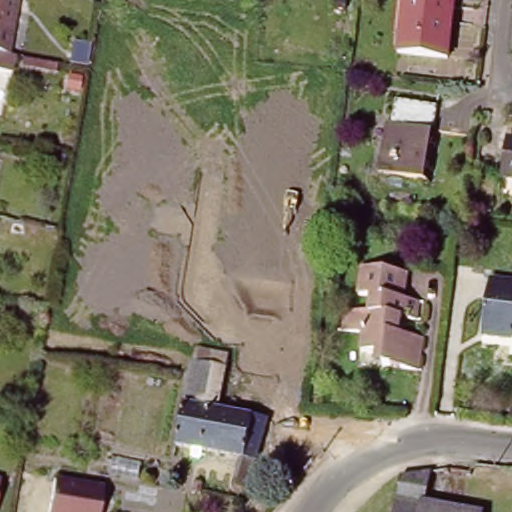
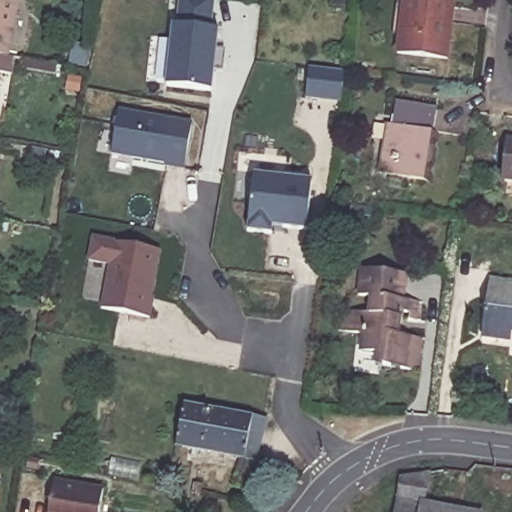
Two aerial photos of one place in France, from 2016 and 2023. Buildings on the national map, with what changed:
unchanged [(0,0),(15,0),(8,55),(0,53),(0,0)]
new [(215,70),(212,92),(167,87),(173,25),(177,25),(180,0),(215,0),(212,29),(219,30),(217,49),(225,50),(222,70),(215,70)]
unchanged [(444,62),(397,57),(404,1),(451,7),(444,62)]
unchanged [(10,74),(0,72),(0,53),(8,55),(12,55),(10,74)]
unchanged [(54,62),(52,70),(18,64),(19,57),(54,62)]
unchanged [(378,180),(384,131),(389,131),(392,105),(430,110),(427,136),(435,137),(430,186),(378,180)]
new [(120,112),(194,126),(185,172),(166,167),(167,166),(113,156),(120,112)]
unchanged [(502,179),(507,142),(512,143),(512,181),(502,179)]
new [(255,176),(313,182),(308,232),(284,230),(285,225),(274,224),(273,236),(249,233),(255,176)]
unchanged [(375,212),(373,228),(353,225),(355,210),(375,212)]
new [(95,240),(161,253),(151,307),(153,308),(151,320),(104,311),(112,267),(90,262),(95,240)]
unchanged [(404,302),(422,305),(420,322),(397,320),(395,337),(420,339),(416,372),(385,369),(387,357),(364,353),(365,335),(344,332),(346,312),(375,315),(376,299),(360,297),(364,271),(407,276),(404,302)]
unchanged [(510,330),(509,342),(478,338),(486,282),(512,285),(512,330),(510,330)]
demolished [(287,385),(287,382),(289,375),(307,376),(306,384),(305,389),(303,407),(285,409),(287,385)]
unchanged [(220,408),(222,399),(271,411),(245,504),(231,501),(240,460),(210,453),(220,408)]
unchanged [(210,453),(175,446),(185,401),(220,408),(210,453)]
unchanged [(402,482),(433,473),(427,512),(397,512),(402,482)]
unchanged [(100,489),(96,512),(45,512),(51,481),(100,489)]
unchanged [(202,495),(190,492),(192,481),(204,482),(202,495)]

